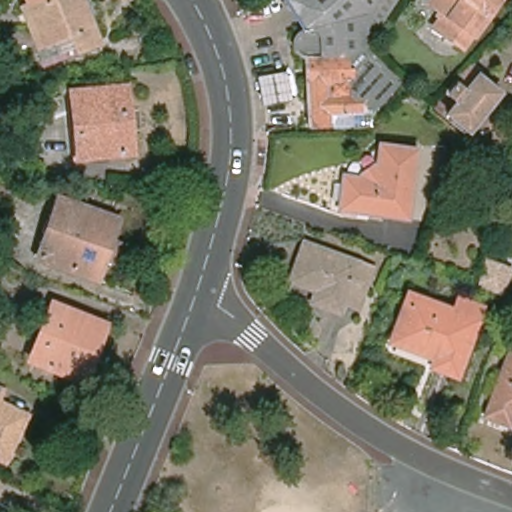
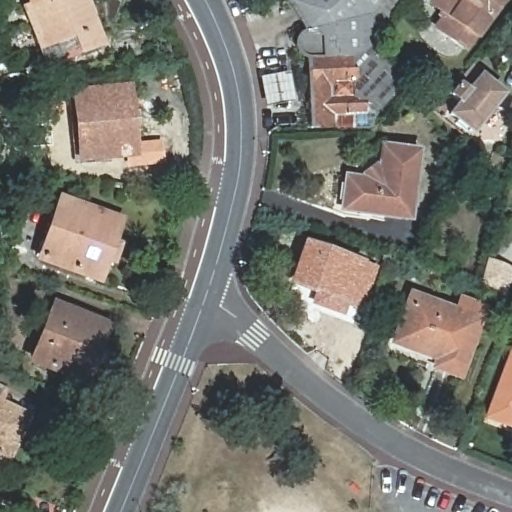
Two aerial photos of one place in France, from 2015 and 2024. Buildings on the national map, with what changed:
unchanged [(77,55),(75,49),(41,61),(31,35),(37,33),(25,0),(79,0),(97,47),(77,55)]
unchanged [(363,106),(356,117),(329,118),(329,133),(311,132),(305,61),(296,56),(295,49),(295,44),(297,36),(300,34),(303,31),(283,0),(401,0),(389,20),(377,24),(372,31),(371,41),(371,51),(402,84),(373,112),(363,106)]
unchanged [(441,22),(445,18),(437,12),(442,5),(435,0),(496,0),(467,39),(441,22)]
unchanged [(485,76),(481,81),(501,96),(470,138),(448,123),(456,111),(442,100),(473,68),(485,76)]
unchanged [(292,71),(297,99),(266,104),(261,75),(292,71)]
unchanged [(420,93),(415,99),(402,90),(408,84),(420,93)]
unchanged [(127,91),(132,153),(80,157),(76,95),(127,91)]
unchanged [(342,215),(339,210),(342,186),(347,183),(368,185),(375,180),(379,150),(415,155),(406,224),(342,215)]
unchanged [(110,265),(100,260),(92,280),(36,259),(56,206),(112,228),(105,247),(115,250),(110,265)]
unchanged [(317,286),(292,277),(307,239),(372,264),(369,275),(358,302),(344,297),(340,306),(323,299),(313,295),(317,286)]
unchanged [(477,277),(482,259),(508,269),(498,294),(475,284),(477,277)]
unchanged [(434,372),(437,363),(393,347),(407,308),(423,314),(426,307),(456,318),(462,302),(483,309),(456,381),(434,372)]
unchanged [(102,329),(82,382),(30,362),(52,309),(102,329)]
unchanged [(512,343),(512,411),(511,411),(508,419),(486,411),(512,343)]
unchanged [(10,455),(0,451),(0,400),(30,413),(10,455)]

